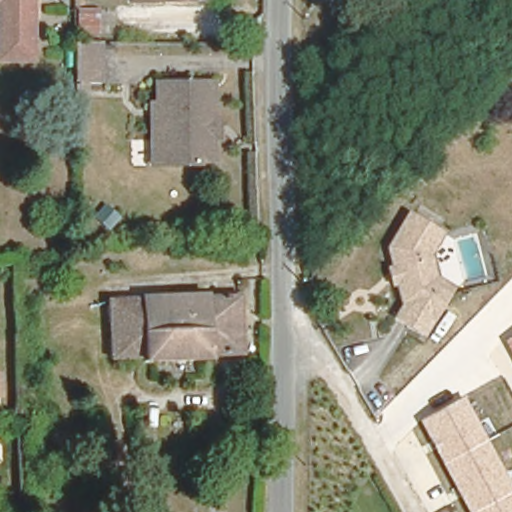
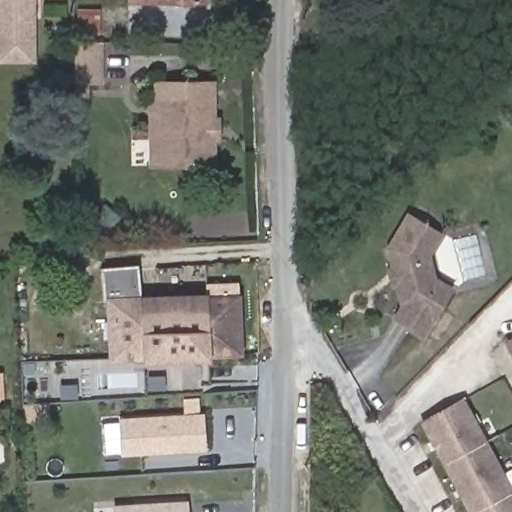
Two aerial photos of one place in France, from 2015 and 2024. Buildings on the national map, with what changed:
unchanged [(33,0),(33,51),(4,51),(3,0),(33,0)]
unchanged [(127,12),(127,0),(175,0),(174,14),(161,13),(127,12)]
unchanged [(73,17),(94,15),(95,40),(72,40),(73,17)]
unchanged [(72,46),(102,45),(101,85),(73,84),(72,46)]
unchanged [(146,141),(152,141),(152,87),(206,87),(206,122),(215,123),(215,139),(207,140),(205,165),(159,164),(146,163),(146,141)]
unchanged [(440,305),(422,337),(400,325),(393,321),(401,306),(399,305),(394,286),(389,288),(384,271),(389,270),(384,252),(404,217),(437,236),(425,257),(431,280),(449,290),(440,305)]
unchanged [(238,350),(208,351),(206,355),(206,356),(204,358),(146,360),(140,352),(113,352),(111,298),(107,269),(141,267),(143,297),(238,294),(238,350)]
unchanged [(505,340),(512,336),(512,350),(505,340)]
unchanged [(5,382),(0,382),(0,365),(5,365),(5,382)]
unchanged [(512,490),(512,512),(468,512),(420,423),(465,398),(512,490)]
new [(206,413),(208,448),(123,453),(121,418),(206,413)]
new [(112,505),(187,500),(188,512),(112,512),(112,505)]

